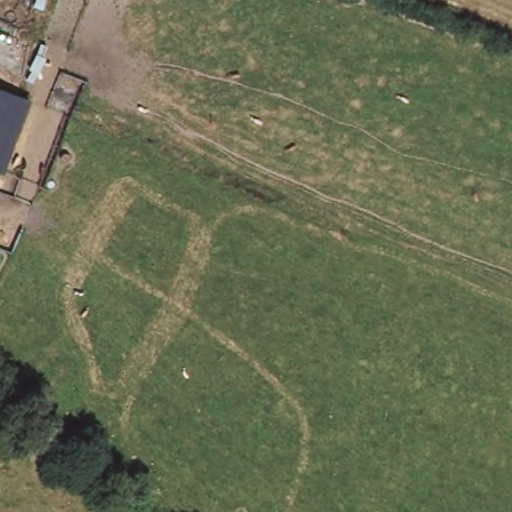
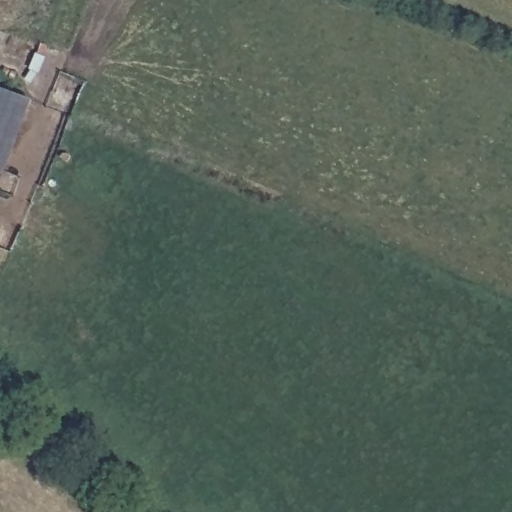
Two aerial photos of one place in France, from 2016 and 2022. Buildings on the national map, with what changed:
unchanged [(2,172),(0,171),(0,90),(28,101),(2,172)]

